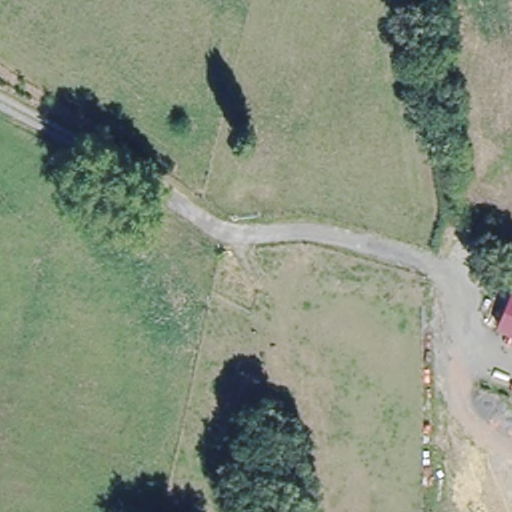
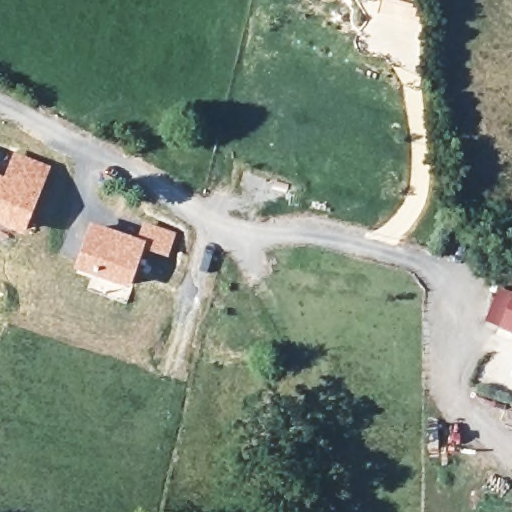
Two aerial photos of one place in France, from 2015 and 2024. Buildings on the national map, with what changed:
new [(12,151),(52,166),(23,236),(0,227),(0,175),(2,176),(12,151)]
new [(137,237),(142,221),(176,233),(167,259),(143,251),(129,289),(73,271),(89,223),(137,237)]
unchanged [(500,333),(512,298),(512,338),(500,333)]

